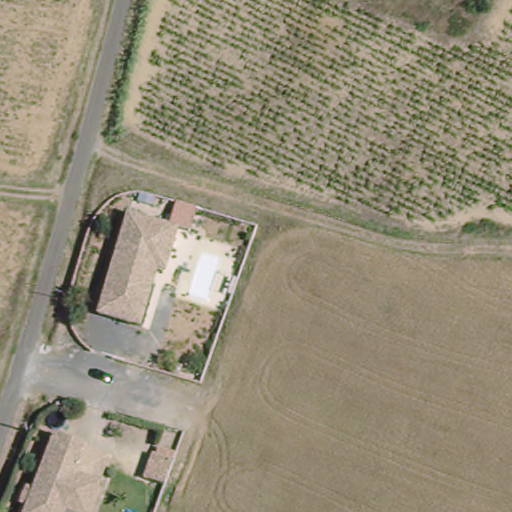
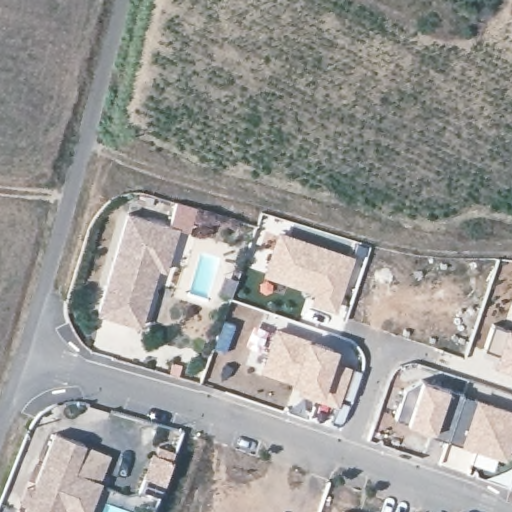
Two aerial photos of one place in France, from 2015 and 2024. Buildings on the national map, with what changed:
new [(178,202),(198,207),(190,233),(171,227),(178,202)]
unchanged [(99,315),(130,214),(179,230),(171,253),(166,270),(157,267),(138,327),(128,323),(99,315)]
new [(278,230),(355,254),(335,311),(308,301),(311,292),(273,280),(269,293),(258,289),(278,230)]
new [(492,323),(504,327),(512,305),(512,371),(492,365),(495,351),(484,347),(492,323)]
new [(274,325),(339,347),(336,357),(353,365),(352,367),(360,370),(351,397),(343,394),(338,406),(297,392),(299,386),(259,371),(274,325)]
new [(512,412),(512,444),(505,463),(465,450),(464,452),(448,446),(465,397),(512,412)]
unchanged [(54,433),(81,443),(81,445),(110,455),(100,483),(89,512),(69,512),(67,511),(66,512),(25,512),(30,497),(54,433)]
unchanged [(146,476),(154,452),(157,452),(160,445),(176,451),(165,482),(146,476)]

